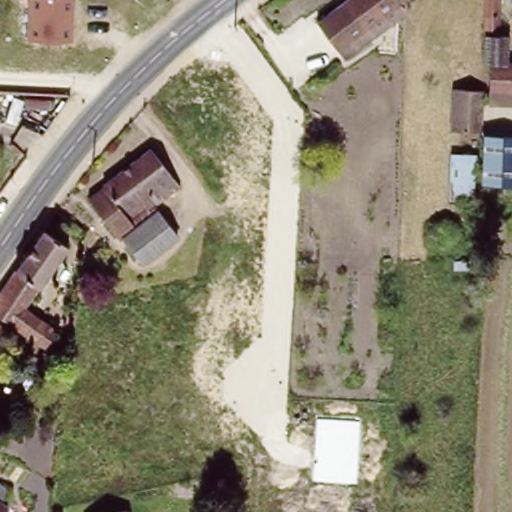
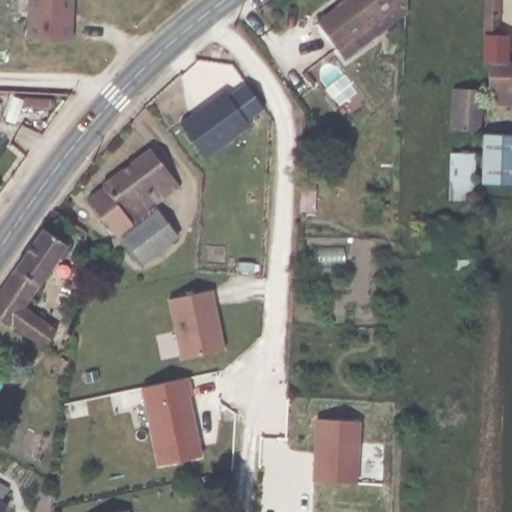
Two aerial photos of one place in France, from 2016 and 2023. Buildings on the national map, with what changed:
unchanged [(29,0),(72,0),(70,39),(27,37),(29,0)]
unchanged [(338,44),(319,17),(342,0),(397,0),(338,44)]
unchanged [(409,10),(347,55),(338,44),(397,0),(409,0),(409,10)]
unchanged [(496,29),(481,29),(483,0),(496,0),(496,29)]
unchanged [(496,29),(510,29),(510,56),(512,56),(512,105),(486,104),(486,85),(477,85),(481,29),(496,29)]
unchanged [(474,125),(445,124),(448,84),(477,85),(474,125)]
new [(224,92),(249,126),(205,159),(180,124),(224,92)]
unchanged [(484,130),(512,131),(512,180),(483,180),(484,130)]
unchanged [(149,147),(179,187),(143,215),(141,211),(115,231),(90,200),(106,187),(102,182),(149,147)]
unchanged [(477,153),(475,204),(452,202),(453,152),(477,153)]
unchanged [(126,239),(158,212),(177,235),(163,245),(145,261),(130,244),(126,239)]
unchanged [(22,306),(67,331),(55,351),(0,319),(0,298),(40,229),(60,241),(22,306)]
new [(211,290),(224,350),(182,358),(169,299),(211,290)]
new [(187,377),(191,395),(187,395),(200,456),(159,465),(142,387),(187,377)]
unchanged [(360,421),(357,485),(312,481),(315,418),(360,421)]
unchanged [(6,505),(2,512),(0,512),(0,481),(9,486),(2,501),(6,505)]
unchanged [(128,512),(114,512),(127,509),(128,512)]

